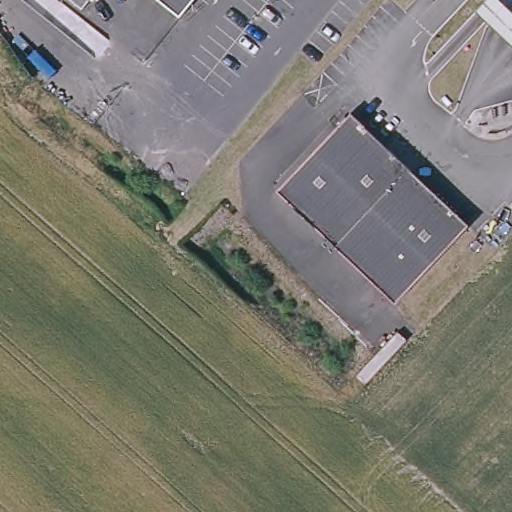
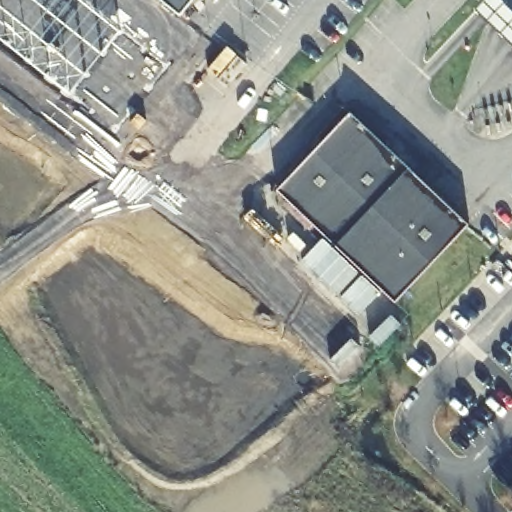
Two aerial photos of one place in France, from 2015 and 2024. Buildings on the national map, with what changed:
new [(73,94),(0,37),(0,0),(83,0),(123,31),(73,94)]
new [(162,0),(192,0),(180,15),(162,0)]
unchanged [(478,14),(492,0),(500,0),(512,11),(512,46),(478,14)]
unchanged [(344,112),(463,225),(389,304),(269,191),(344,112)]
new [(512,511),(512,512),(509,512),(512,511)]

